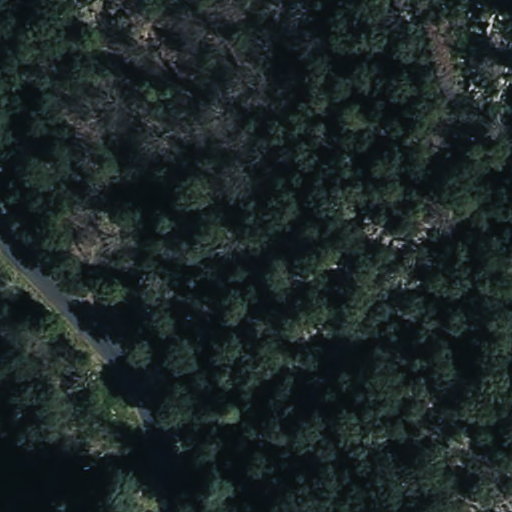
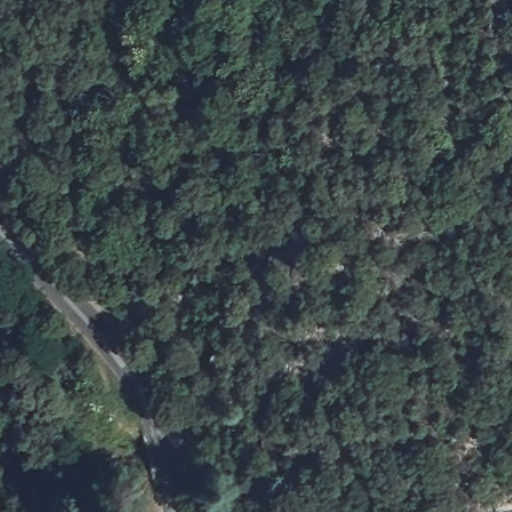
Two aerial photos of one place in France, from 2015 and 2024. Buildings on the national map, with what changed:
[]

